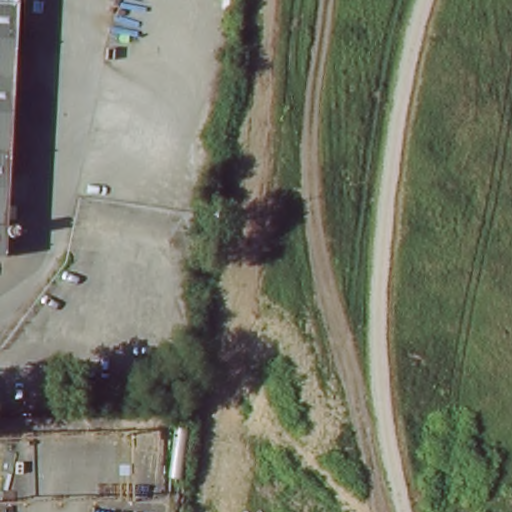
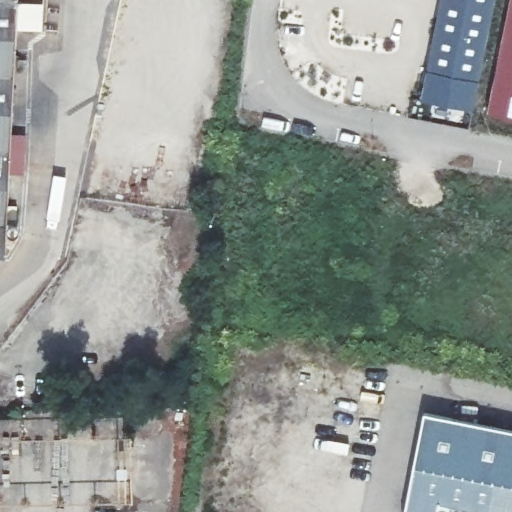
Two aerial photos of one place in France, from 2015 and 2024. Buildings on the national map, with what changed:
unchanged [(0,0),(15,0),(7,222),(0,221),(0,0)]
new [(480,79),(425,69),(437,0),(496,0),(480,79)]
new [(508,0),(512,0),(512,119),(486,114),(508,0)]
new [(425,69),(480,79),(472,111),(419,101),(425,69)]
new [(512,431),(512,512),(403,512),(423,413),(512,431)]

